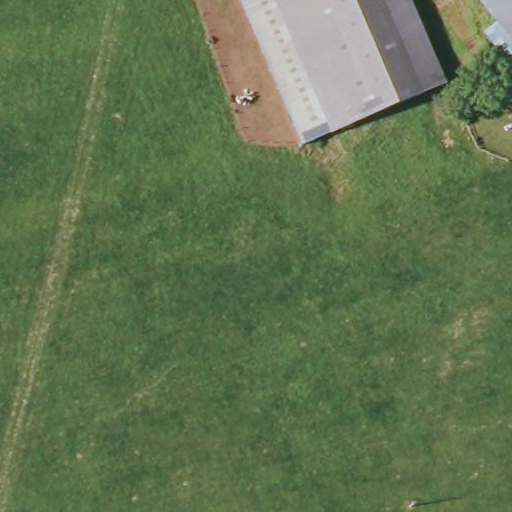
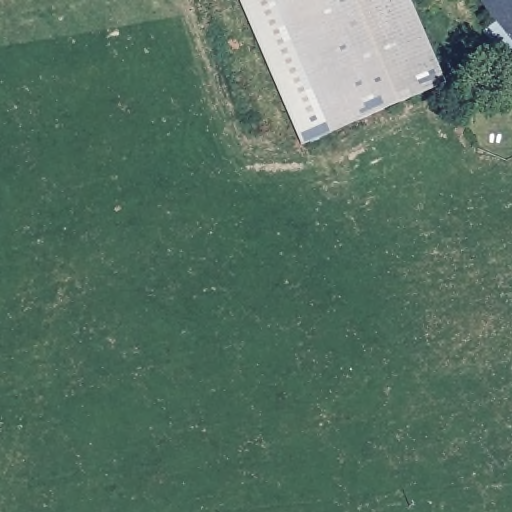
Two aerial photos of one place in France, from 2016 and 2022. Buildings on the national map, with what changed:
unchanged [(304,142),(242,0),(406,0),(440,90),(304,142)]
unchanged [(512,0),(512,38),(481,0),(512,0)]

